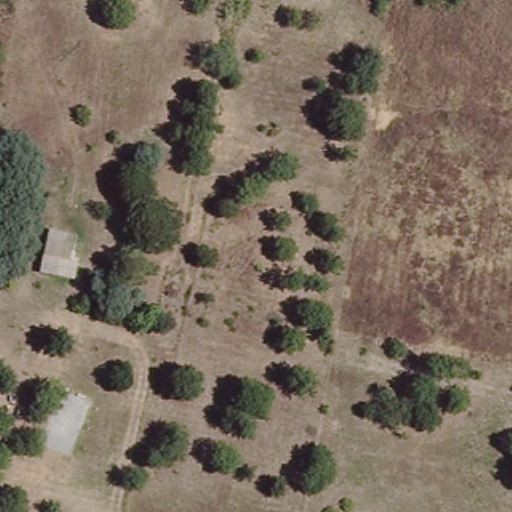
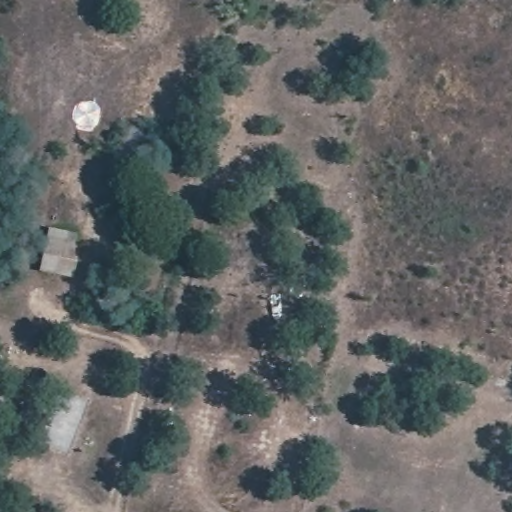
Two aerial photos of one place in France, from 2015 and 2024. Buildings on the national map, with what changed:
unchanged [(48,242),(77,248),(73,267),(46,261),(48,242)]

